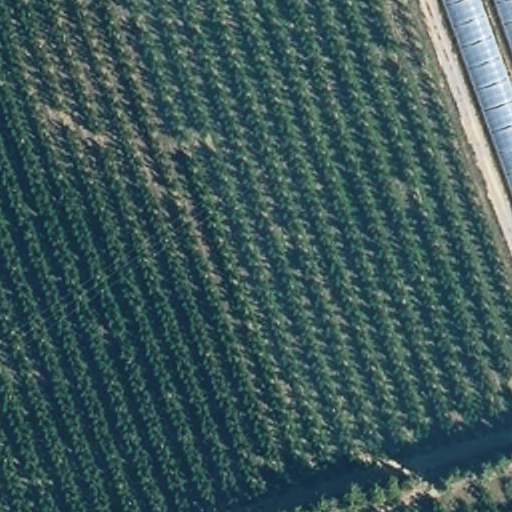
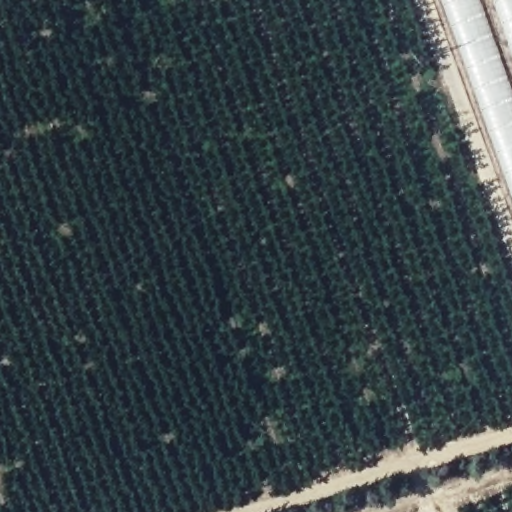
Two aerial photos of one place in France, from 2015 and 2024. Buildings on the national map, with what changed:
unchanged [(481,0),(512,87),(512,195),(441,0),(481,0)]
unchanged [(512,0),(512,50),(494,0),(512,0)]

